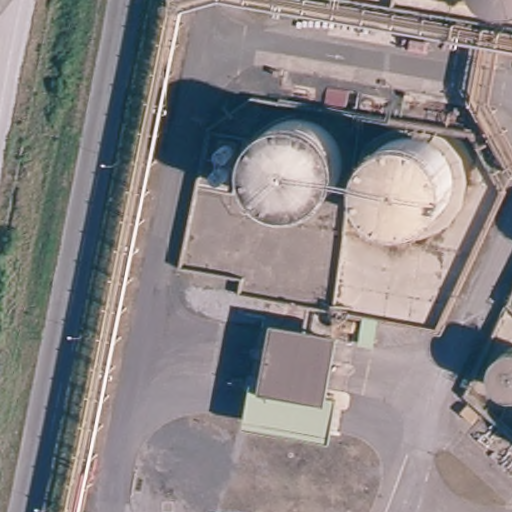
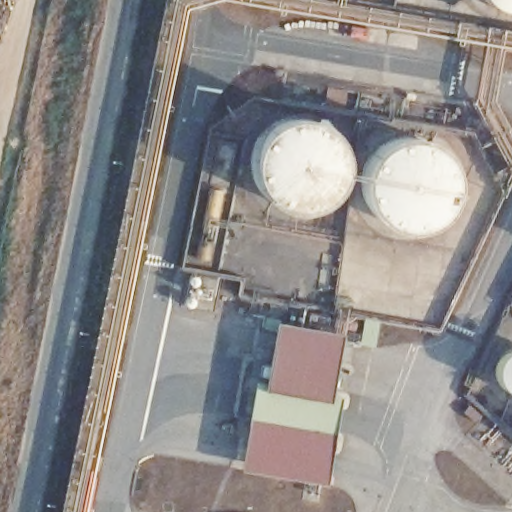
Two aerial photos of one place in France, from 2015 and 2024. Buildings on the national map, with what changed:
unchanged [(341,328),(329,394),(265,388),(282,318),(341,328)]
unchanged [(329,394),(344,397),(333,439),(247,423),(254,385),(265,388),(329,394)]
new [(325,483),(241,468),(249,424),(333,439),(325,483)]

